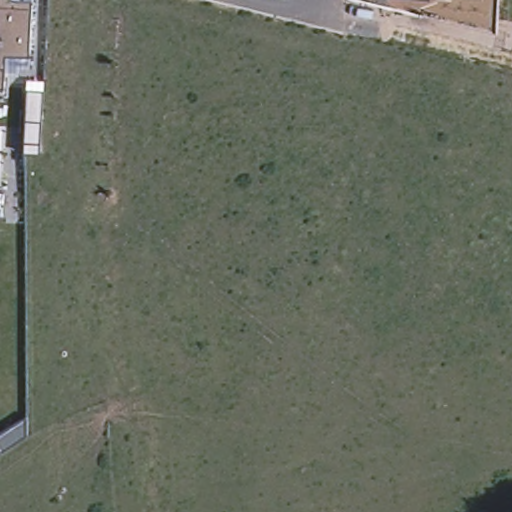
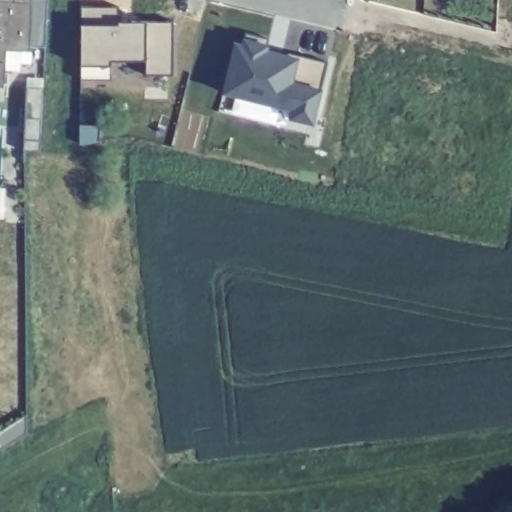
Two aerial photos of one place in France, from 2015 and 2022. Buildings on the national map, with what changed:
unchanged [(33,51),(4,51),(5,85),(0,84),(0,0),(33,0),(33,51)]
new [(80,65),(80,27),(80,6),(120,6),(120,27),(132,27),(132,23),(146,23),(173,22),(173,74),(145,74),(145,61),(110,62),(110,80),(79,81),(80,65)]
new [(244,46),(246,40),(270,46),(269,52),(291,58),(290,55),(326,64),(314,125),(291,120),(292,110),(224,94),(236,45),(244,46)]

